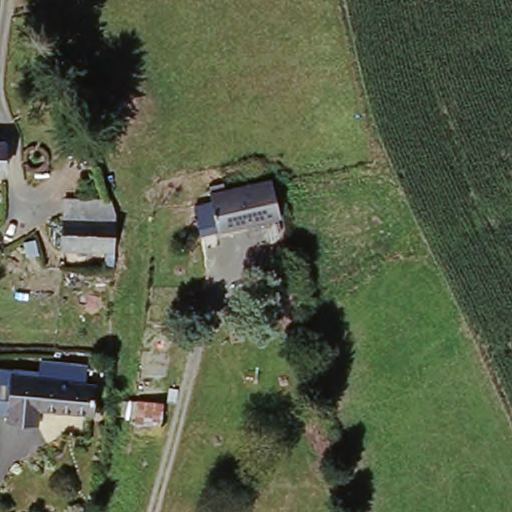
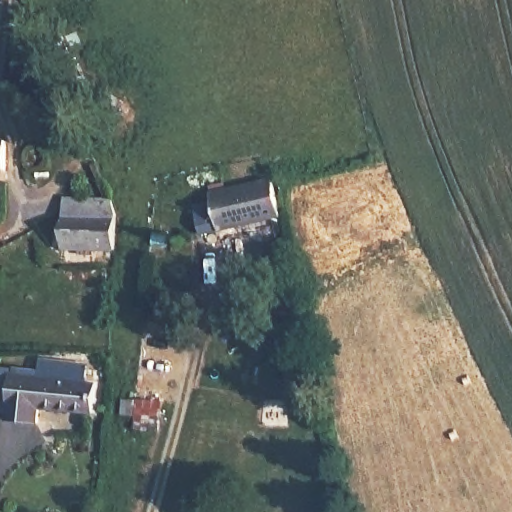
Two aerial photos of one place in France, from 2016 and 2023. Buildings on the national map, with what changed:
unchanged [(6,166),(0,166),(0,138),(8,138),(6,166)]
unchanged [(284,218),(203,233),(198,205),(213,201),(213,195),(276,183),(284,218)]
unchanged [(115,219),(114,250),(65,249),(64,201),(110,202),(115,219)]
unchanged [(86,362),(85,382),(95,384),(94,413),(40,409),(38,425),(8,422),(11,376),(36,378),(39,359),(86,362)]
unchanged [(159,404),(156,431),(136,430),(139,403),(159,404)]

